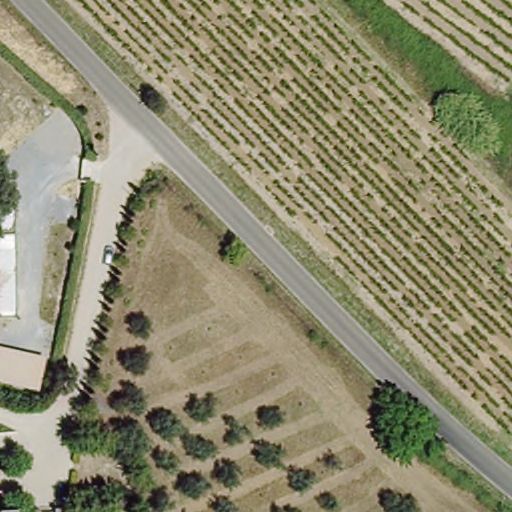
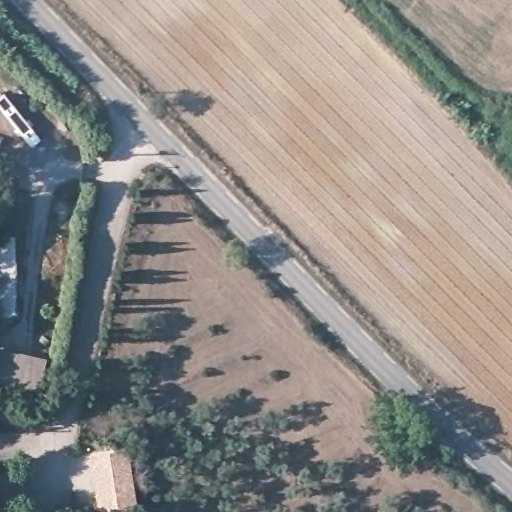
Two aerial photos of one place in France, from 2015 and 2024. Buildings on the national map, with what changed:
unchanged [(0,224),(14,223),(18,314),(0,316),(0,224)]
unchanged [(40,391),(0,382),(0,347),(48,358),(40,391)]
new [(133,503),(134,512),(99,512),(89,453),(128,447),(137,502),(133,503)]

